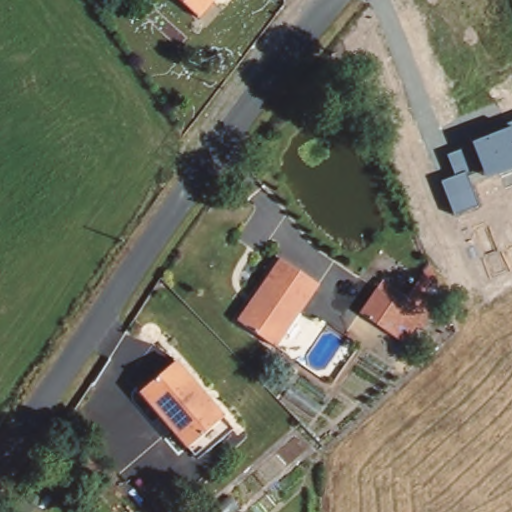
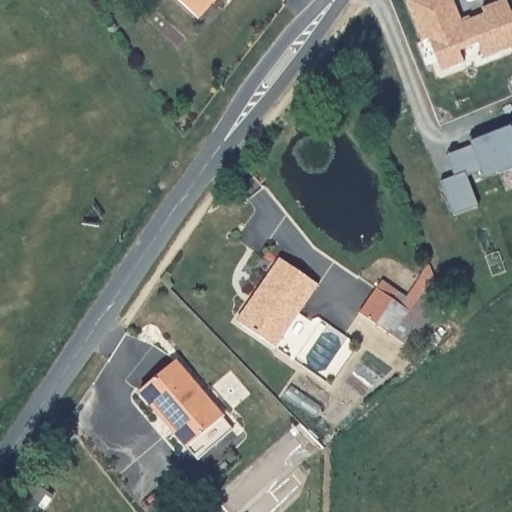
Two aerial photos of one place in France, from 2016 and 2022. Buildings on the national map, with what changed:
unchanged [(184,0),(217,0),(202,16),(184,0)]
new [(465,44),(470,55),(448,65),(432,33),(426,35),(412,0),(460,0),(465,11),(473,8),(475,11),(488,6),(486,0),(512,0),(512,41),(505,44),(490,50),(484,36),(465,44)]
unchanged [(485,178),(481,169),(466,175),(477,205),(452,215),(439,183),(454,176),(446,155),(471,145),(470,142),(504,129),(502,125),(512,121),(512,168),(485,178)]
unchanged [(260,293),(289,255),(328,285),(280,346),(249,322),(242,315),(260,293)]
unchanged [(420,309),(404,331),(373,307),(391,283),(420,309)]
unchanged [(180,359),(227,419),(192,450),(142,388),(180,359)]

